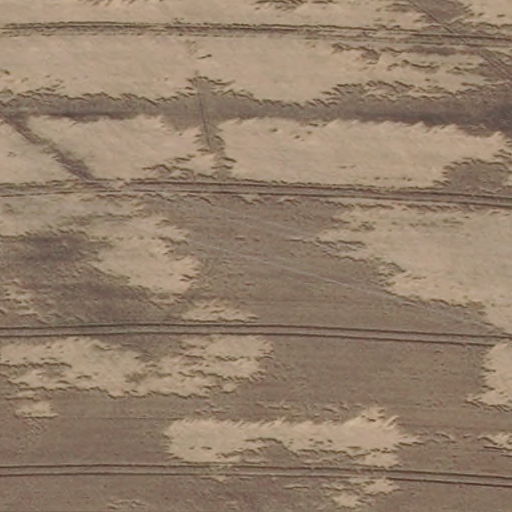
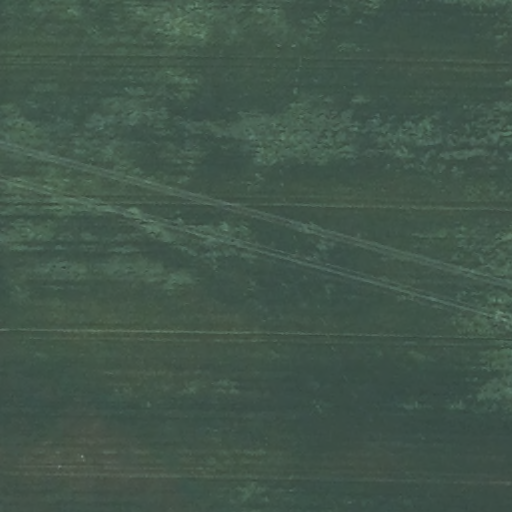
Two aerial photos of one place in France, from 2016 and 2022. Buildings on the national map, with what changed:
[]

